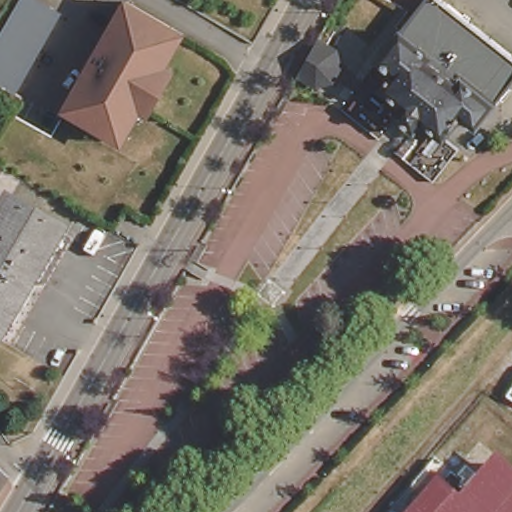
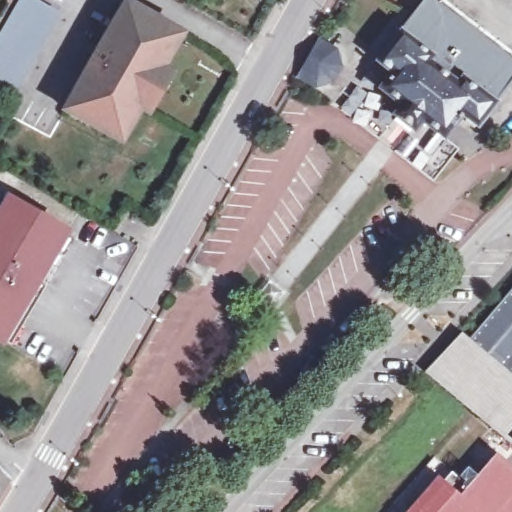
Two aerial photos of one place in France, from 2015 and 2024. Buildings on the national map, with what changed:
unchanged [(39,0),(60,11),(16,91),(0,82),(0,49),(27,0),(39,0)]
unchanged [(123,139),(111,133),(66,108),(83,76),(127,0),(172,25),(183,31),(165,65),(173,70),(150,110),(142,105),(140,109),(123,139)]
unchanged [(437,0),(512,60),(512,90),(481,131),(472,124),(473,122),(468,118),(451,141),(431,126),(423,135),(402,119),(409,110),(387,93),(397,79),(380,65),(432,0),(437,0)]
unchanged [(309,43),(329,55),(333,71),(326,84),(310,88),(290,77),(309,43)]
unchanged [(0,339),(0,223),(12,203),(67,234),(4,341),(0,339)]
new [(460,333),(468,341),(512,290),(512,445),(425,372),(460,333)]
unchanged [(438,472),(461,490),(467,484),(458,474),(467,466),(475,473),(496,452),(512,466),(512,512),(405,512),(438,472)]
unchanged [(8,480),(0,492),(0,471),(8,480)]

